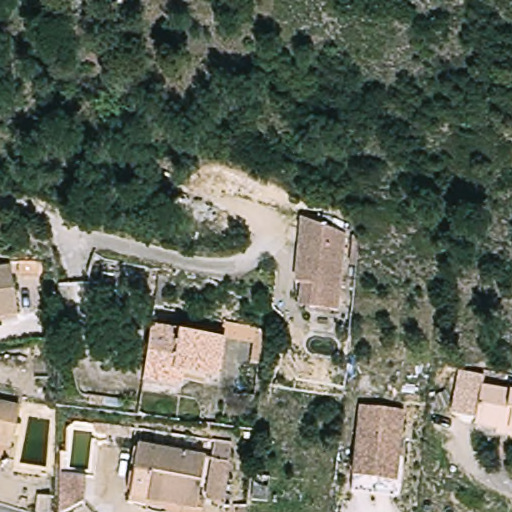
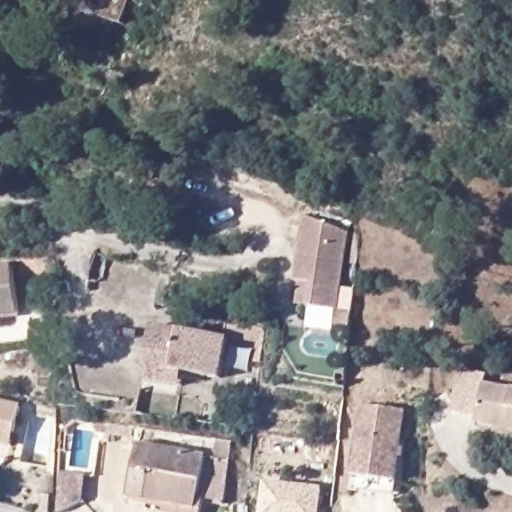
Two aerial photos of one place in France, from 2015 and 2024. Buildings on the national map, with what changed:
unchanged [(338,318),(310,315),(313,298),(300,296),(301,277),(298,277),(304,212),(345,228),(338,318)]
unchanged [(25,316),(0,319),(0,267),(17,266),(25,316)]
unchanged [(136,380),(138,366),(145,329),(218,343),(212,380),(178,373),(175,388),(136,380)]
unchanged [(512,388),(512,428),(480,427),(475,427),(477,387),(483,387),(512,388)]
unchanged [(0,402),(22,407),(16,433),(12,447),(0,444),(0,402)]
unchanged [(354,487),(355,472),(363,402),(405,407),(398,478),(397,492),(354,487)]
unchanged [(212,433),(236,438),(223,507),(202,502),(200,512),(166,512),(162,512),(165,506),(132,501),(139,445),(209,454),(212,433)]
new [(321,512),(261,512),(265,482),(322,487),(321,512)]

